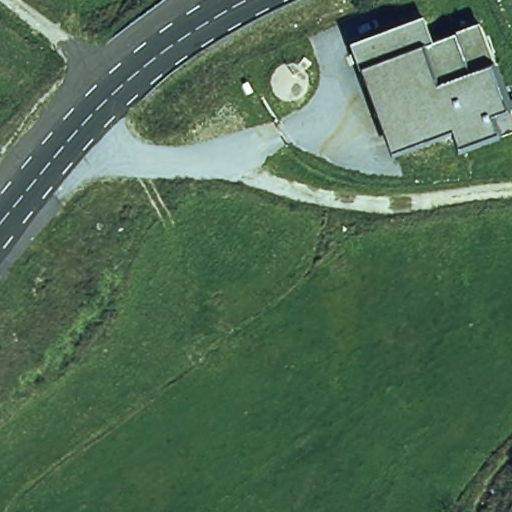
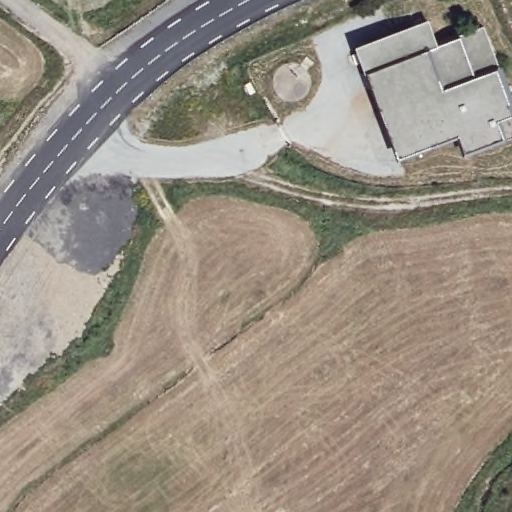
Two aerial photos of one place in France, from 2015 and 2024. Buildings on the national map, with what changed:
unchanged [(437,42),(484,25),(512,102),(512,135),(465,152),(456,133),(398,155),(357,43),(427,16),(437,42)]

